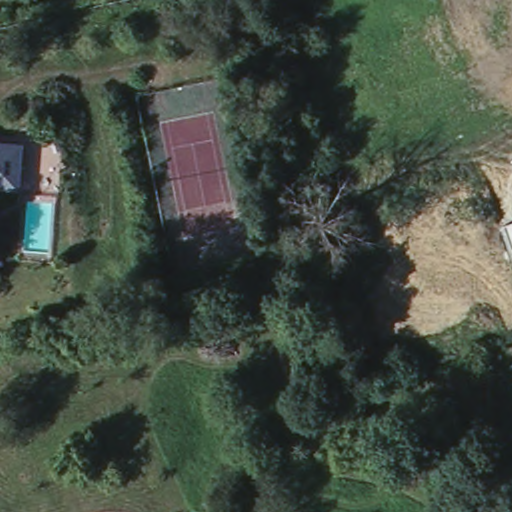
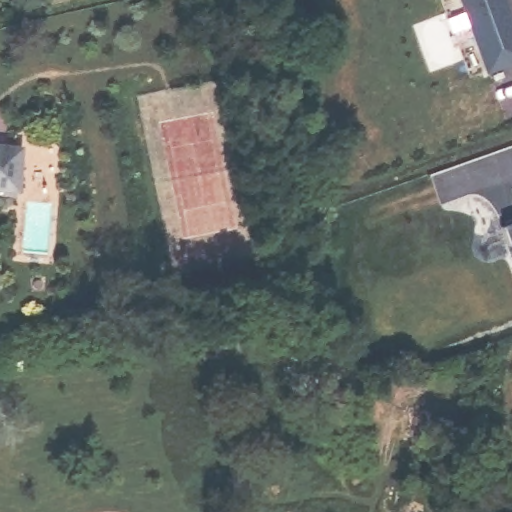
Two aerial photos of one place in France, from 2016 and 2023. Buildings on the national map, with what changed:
new [(496,0),(500,13),(512,46),(512,60),(479,72),(463,26),(458,14),(453,0),(496,0)]
unchanged [(0,144),(22,145),(23,192),(0,191),(0,144)]
unchanged [(506,226),(512,224),(512,246),(506,226)]

